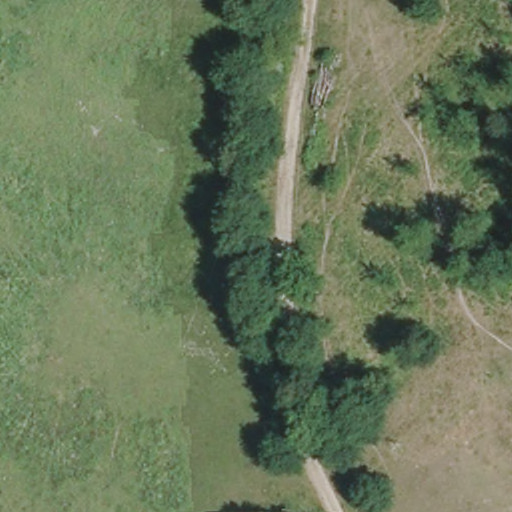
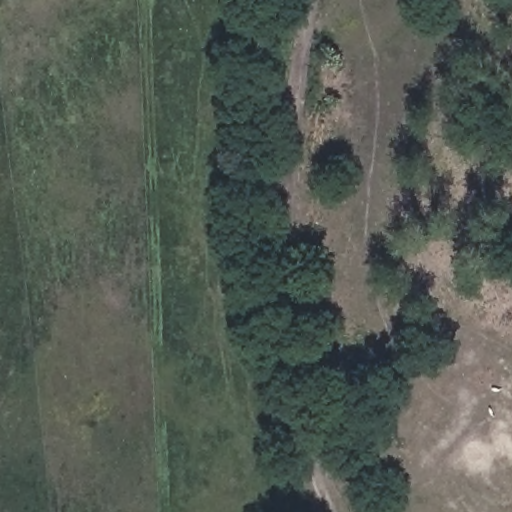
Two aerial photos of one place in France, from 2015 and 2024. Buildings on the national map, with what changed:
[]

